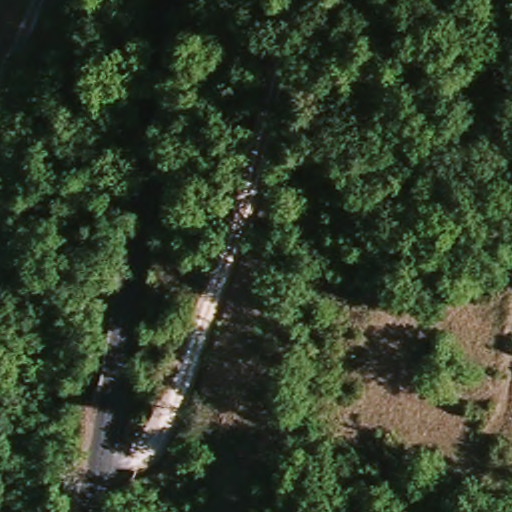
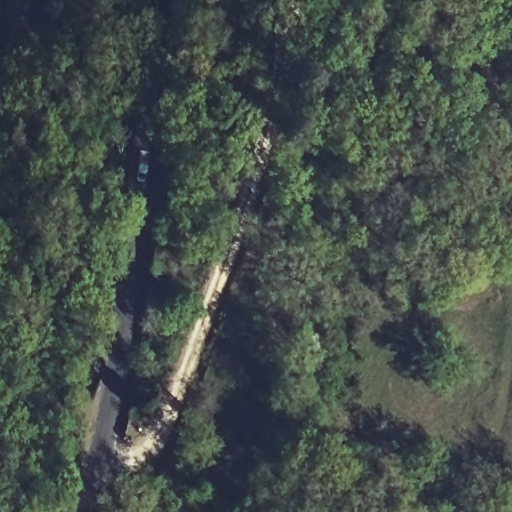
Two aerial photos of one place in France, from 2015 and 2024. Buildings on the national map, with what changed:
unchanged [(89,408),(69,398),(78,379),(97,388),(89,408)]

